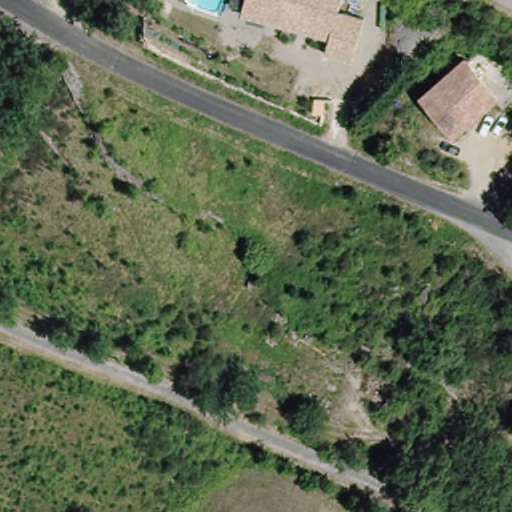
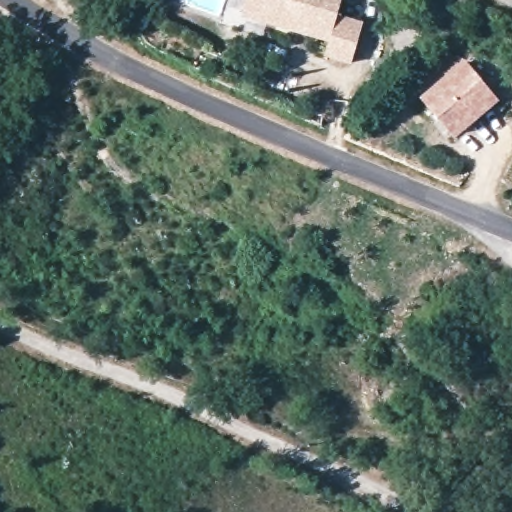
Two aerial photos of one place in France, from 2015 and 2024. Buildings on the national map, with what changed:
unchanged [(247,0),(342,0),(339,12),(363,20),(352,61),(327,57),(330,42),(243,14),(247,0)]
unchanged [(512,88),(512,108),(504,117),(491,108),(450,142),(421,104),(471,60),(512,88)]

